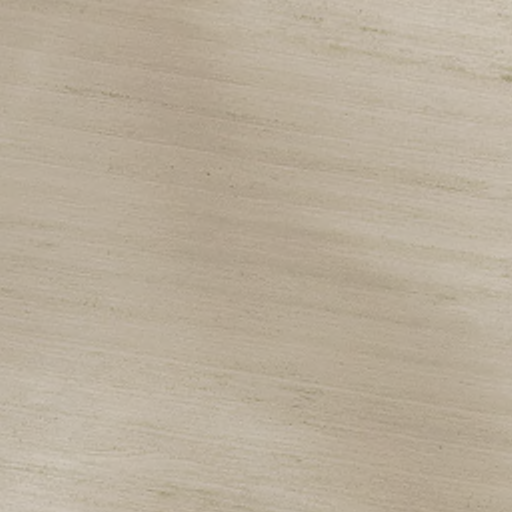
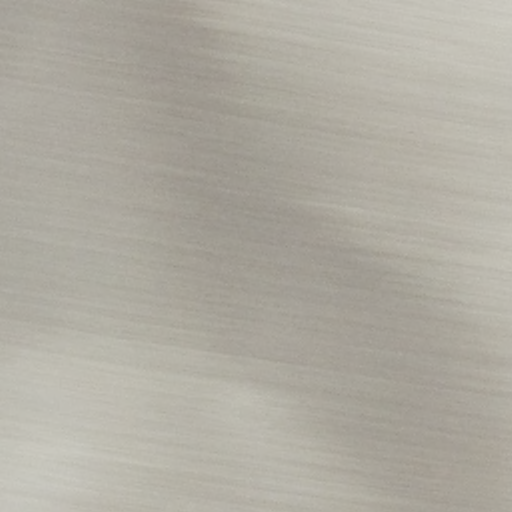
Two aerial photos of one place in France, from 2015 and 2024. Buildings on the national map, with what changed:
[]

